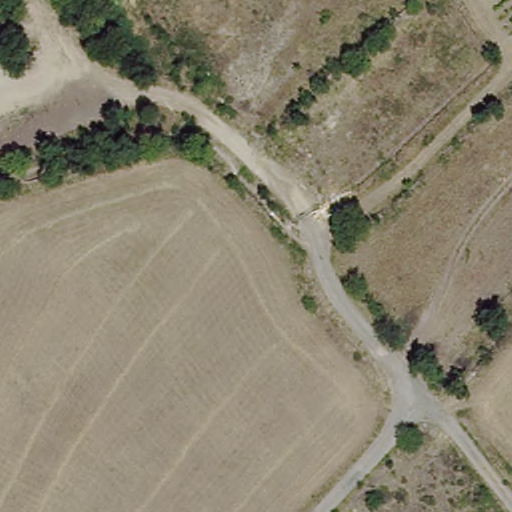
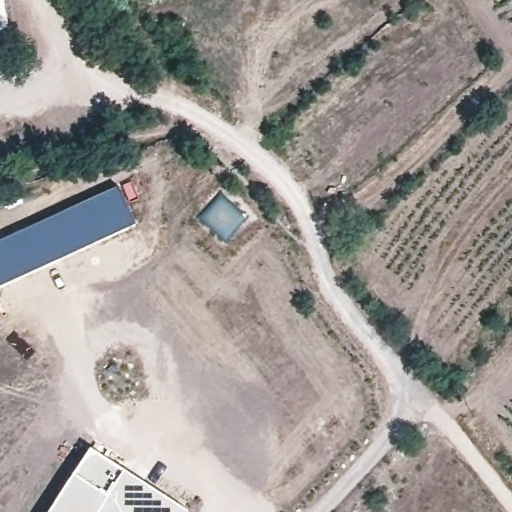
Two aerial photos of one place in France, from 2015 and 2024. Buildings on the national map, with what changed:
unchanged [(388,27),(413,7),(422,22),(398,38),(388,27)]
new [(0,241),(118,187),(135,222),(0,285),(0,241)]
new [(186,512),(48,512),(91,447),(188,509),(186,512)]

